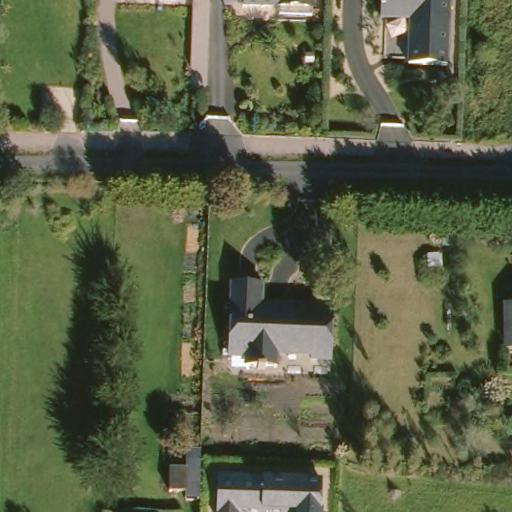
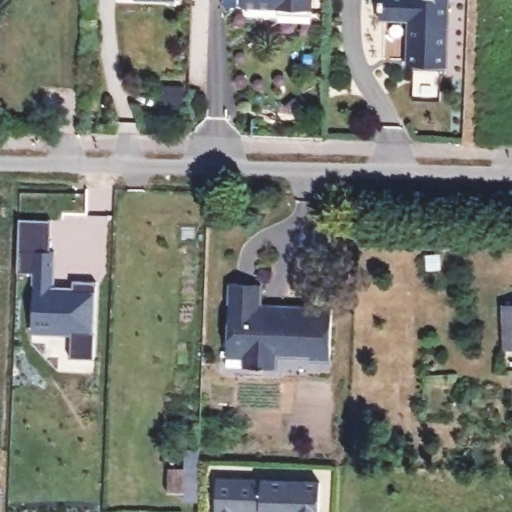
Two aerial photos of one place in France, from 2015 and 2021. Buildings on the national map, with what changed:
unchanged [(240,11),(240,0),(308,0),(308,12),(240,11)]
unchanged [(406,22),(377,21),(378,0),(447,0),(445,67),(405,67),(406,22)]
new [(70,359),(70,336),(30,335),(33,272),(18,271),(19,221),(50,222),(50,252),(56,252),(56,286),(72,287),(73,280),(95,282),(92,358),(70,359)]
unchanged [(258,291),(257,316),(275,317),(275,309),(331,311),(328,369),(301,368),(301,360),(273,358),(272,375),(244,374),(245,363),(225,362),(228,290),(258,291)]
unchanged [(512,350),(500,350),(502,307),(512,307),(512,350)]
unchanged [(185,465),(184,490),(167,490),(167,464),(185,465)]
unchanged [(322,480),(321,512),(211,512),(214,473),(322,480)]

